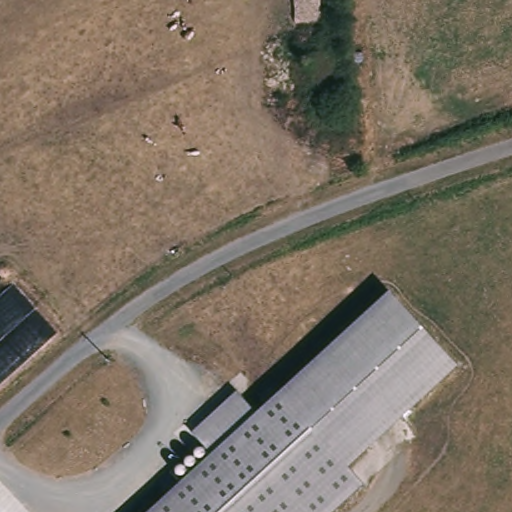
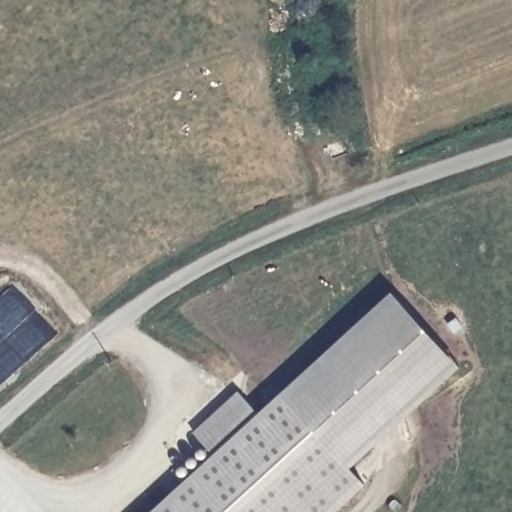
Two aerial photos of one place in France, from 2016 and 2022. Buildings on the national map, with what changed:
unchanged [(351,469),(365,485),(335,512),(150,512),(214,454),(192,433),(236,392),(257,414),(391,291),(460,367),(351,469)]

